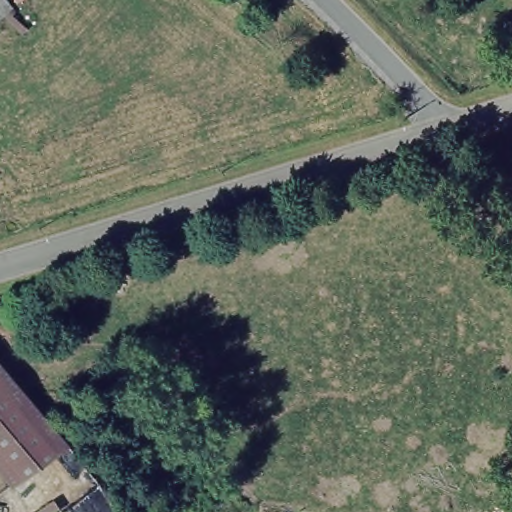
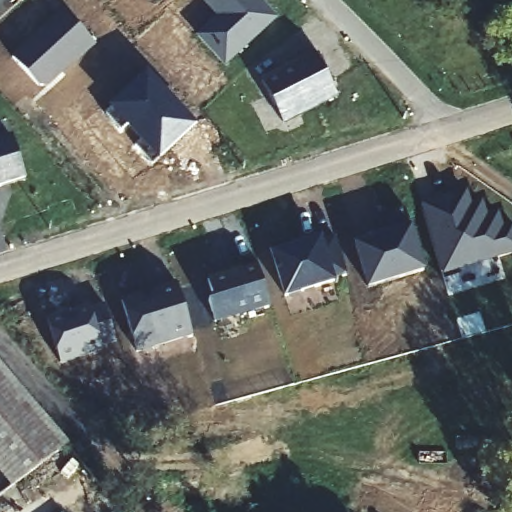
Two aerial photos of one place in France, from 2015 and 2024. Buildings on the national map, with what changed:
unchanged [(23,2),(22,0),(26,0),(23,2)]
new [(277,20),(225,68),(195,36),(217,17),(201,0),(259,0),(277,20)]
new [(57,14),(86,45),(73,57),(76,60),(55,80),(40,77),(16,51),(57,14)]
new [(338,97),(282,125),(261,83),(317,55),(338,97)]
new [(195,125),(157,161),(152,166),(135,147),(141,142),(128,128),(122,134),(105,116),(111,109),(109,105),(146,72),(195,125)]
new [(0,189),(0,140),(12,137),(26,182),(0,189)]
new [(470,204),(483,199),(487,216),(498,212),(503,227),(512,225),(512,256),(443,276),(420,204),(466,191),(470,204)]
new [(410,227),(425,272),(366,290),(352,244),(383,235),(377,217),(404,211),(410,227)]
new [(321,241),(335,237),(345,276),(332,279),(333,283),(284,299),(270,252),(322,236),(321,241)]
new [(270,308),(215,326),(207,298),(214,296),(207,280),(255,265),(270,308)]
new [(193,338),(136,356),(120,300),(176,284),(193,338)]
new [(116,347),(61,365),(47,317),(88,305),(90,310),(105,306),(116,347)]
unchanged [(11,489),(0,476),(0,366),(65,444),(11,489)]

